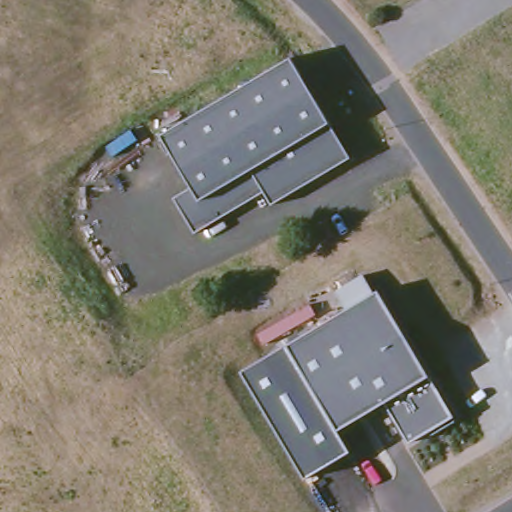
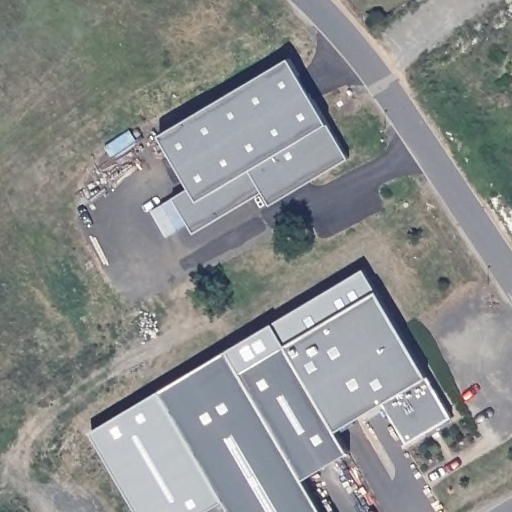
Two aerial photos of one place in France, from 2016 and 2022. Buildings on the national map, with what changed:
unchanged [(189,186),(157,133),(290,55),(326,120),(347,157),(269,202),(261,189),(193,231),(172,196),(189,186)]
unchanged [(283,344),(346,307),(332,288),(360,271),(372,291),(376,289),(425,373),(450,415),(406,441),(381,402),(335,428),(283,344)]
new [(350,454),(305,480),(323,512),(230,512),(159,392),(228,352),(240,373),(285,346),(335,428),(381,402),(384,406),(337,433),(350,454)]
new [(133,512),(88,434),(159,392),(223,500),(205,512),(133,512)]

